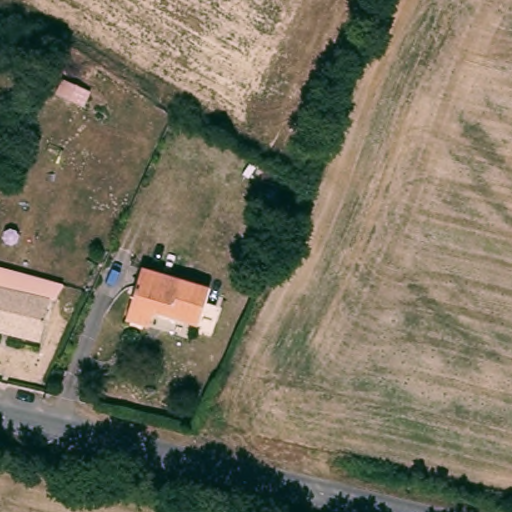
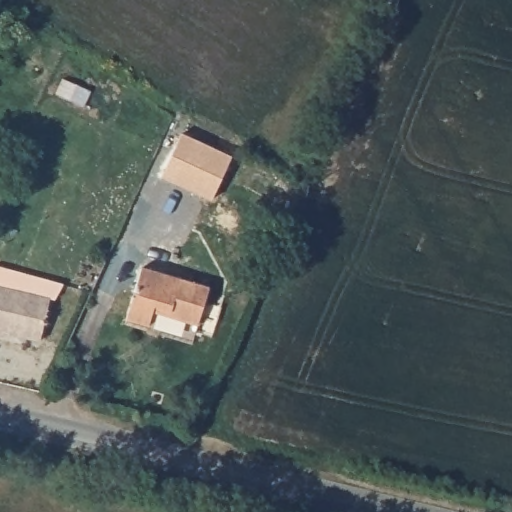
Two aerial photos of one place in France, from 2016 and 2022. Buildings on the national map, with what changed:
unchanged [(83,88),(77,104),(48,92),(55,76),(83,88)]
new [(184,135),(232,156),(214,200),(161,177),(181,133),(184,135)]
unchanged [(4,264),(77,282),(66,300),(61,299),(49,343),(0,330),(0,267),(4,264)]
unchanged [(210,288),(199,325),(154,312),(150,327),(127,320),(142,266),(210,288)]

